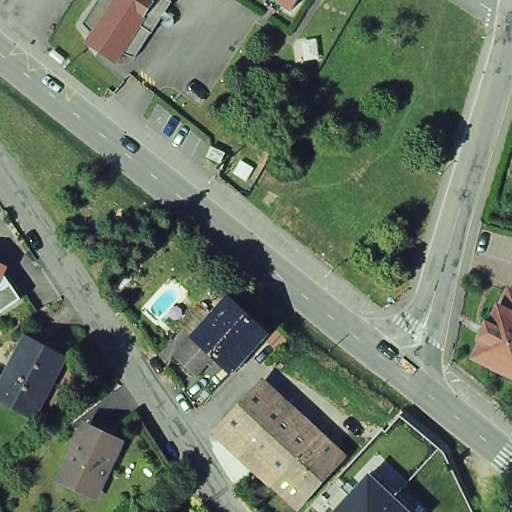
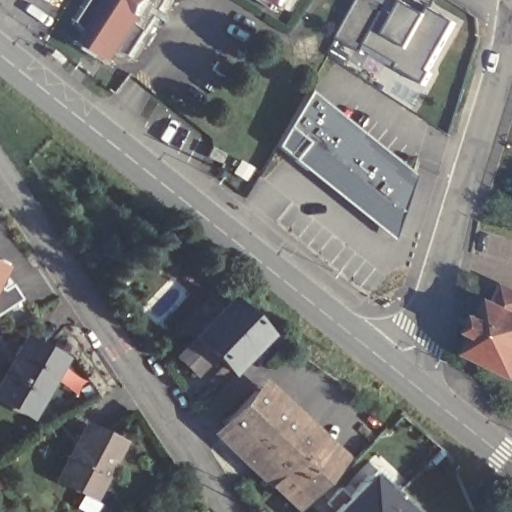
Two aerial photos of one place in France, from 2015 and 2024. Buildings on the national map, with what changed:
unchanged [(122,57),(117,63),(87,43),(92,35),(82,25),(99,0),(175,0),(135,60),(122,57)]
unchanged [(300,0),(291,15),(269,0),(300,0)]
new [(407,0),(408,0),(430,13),(434,6),(460,23),(430,72),(433,74),(427,83),(400,69),(401,66),(369,46),(365,54),(338,40),(363,0),(391,0),(403,8),(407,0)]
new [(419,175),(398,241),(280,145),(315,88),(419,175)]
demolished [(242,150),(260,110),(275,117),(257,157),(242,150)]
unchanged [(206,164),(210,155),(221,161),(218,169),(206,164)]
unchanged [(5,266),(0,278),(0,263),(5,266)]
unchanged [(19,298),(0,312),(0,285),(9,282),(19,298)]
unchanged [(495,327),(509,293),(512,294),(512,378),(480,363),(488,347),(483,345),(491,326),(495,327)]
unchanged [(222,302),(256,332),(227,364),(232,368),(227,373),(207,355),(191,373),(172,357),(222,302)]
unchanged [(38,410),(2,391),(31,338),(66,356),(38,410)]
unchanged [(229,419),(260,386),(281,405),(250,439),(229,419)]
unchanged [(278,480),(285,472),(250,439),(281,405),(340,459),(310,494),(309,494),(301,502),(278,480)]
unchanged [(100,495),(67,479),(90,430),(124,446),(100,495)]
unchanged [(370,472),(411,512),(330,512),(370,472)]

